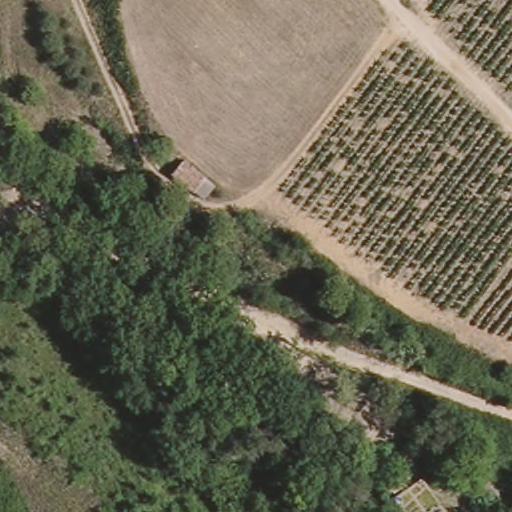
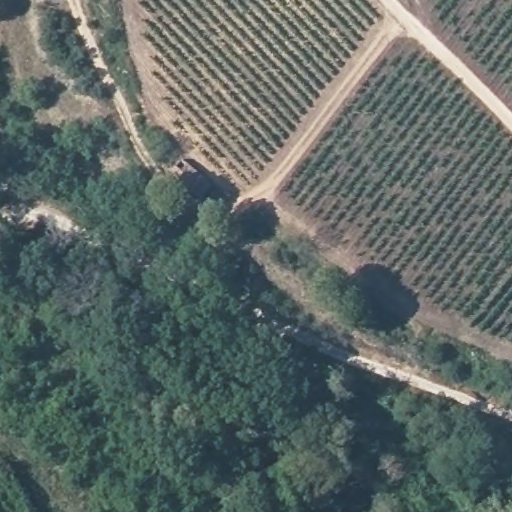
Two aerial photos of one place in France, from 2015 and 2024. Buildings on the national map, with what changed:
unchanged [(186,161),(206,183),(192,197),(172,175),(186,161)]

